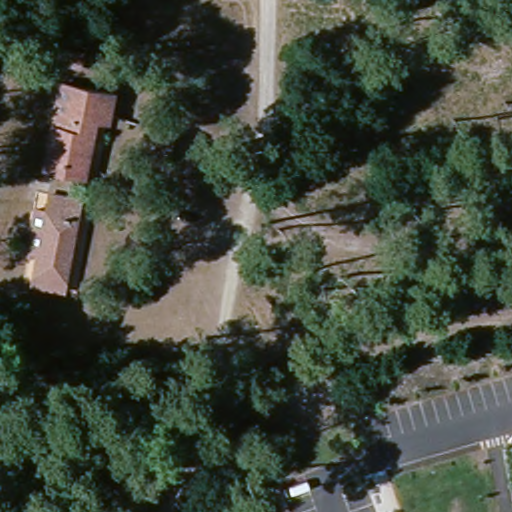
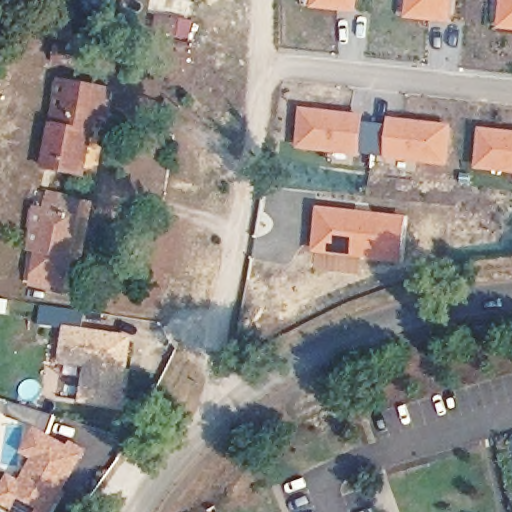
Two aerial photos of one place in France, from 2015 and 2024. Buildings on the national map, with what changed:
new [(356,0),(354,13),(308,8),(309,0),(356,0)]
new [(452,0),(449,23),(404,18),(406,0),(452,0)]
new [(512,0),(512,31),(496,29),(499,0),(512,0)]
unchanged [(81,53),(79,66),(54,61),(57,49),(81,53)]
unchanged [(39,169),(53,84),(93,90),(106,93),(102,120),(89,119),(79,176),(39,169)]
new [(296,149),(300,113),(358,120),(357,128),(387,131),(387,124),(446,131),(442,166),(296,149)]
new [(512,138),(512,174),(474,170),(479,134),(512,138)]
unchanged [(36,259),(26,257),(33,213),(43,215),(46,196),(75,201),(62,292),(32,288),(36,259)]
new [(314,230),(316,213),(401,222),(397,262),(327,254),(312,253),(314,230)]
new [(81,401),(86,367),(60,363),(65,326),(135,335),(125,407),(81,401)]
new [(16,512),(0,504),(0,496),(10,475),(22,482),(33,461),(22,456),(36,430),(87,454),(57,512),(16,512)]

